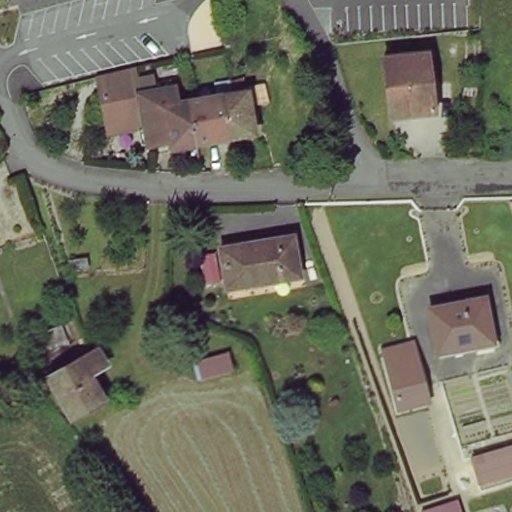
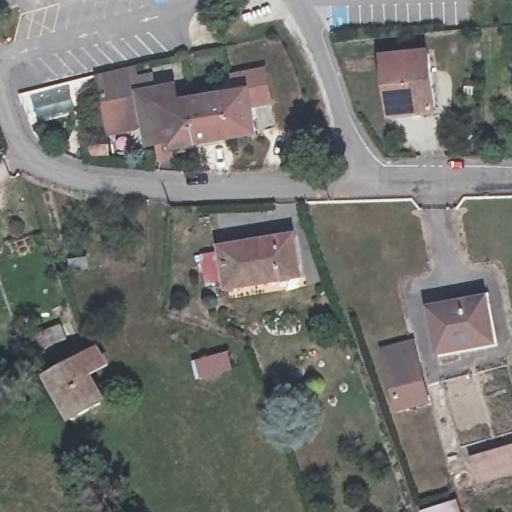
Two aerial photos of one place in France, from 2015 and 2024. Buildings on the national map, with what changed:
unchanged [(430,55),(435,110),(390,114),(386,59),(430,55)]
unchanged [(175,87),(176,99),(191,97),(213,94),(211,80),(226,78),(241,76),(251,133),(226,137),(195,141),(168,145),(167,139),(147,142),(143,121),(106,128),(100,89),(96,73),(133,65),(135,75),(151,72),(154,87),(165,85),(175,87)]
unchanged [(294,234),(301,275),(227,288),(220,246),(294,234)]
unchanged [(489,299),(500,343),(442,355),(432,311),(489,299)]
unchanged [(56,330),(60,344),(31,353),(26,339),(56,330)]
unchanged [(396,411),(387,372),(384,352),(413,346),(417,366),(426,404),(396,411)]
unchanged [(68,417),(47,372),(80,356),(96,348),(102,365),(87,373),(100,400),(68,417)]
unchanged [(233,370),(194,379),(189,360),(228,352),(233,370)]
unchanged [(512,476),(480,485),(472,459),(512,447),(512,476)]

